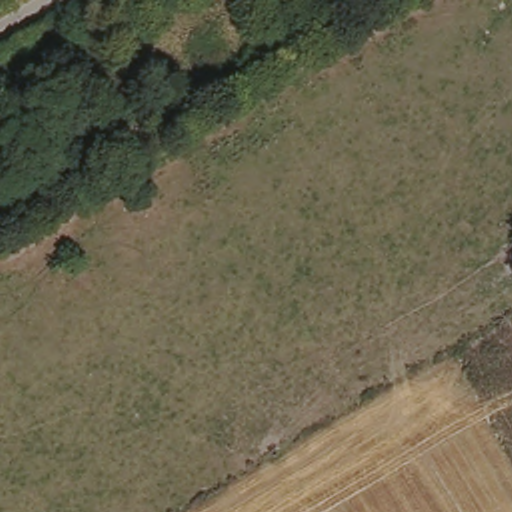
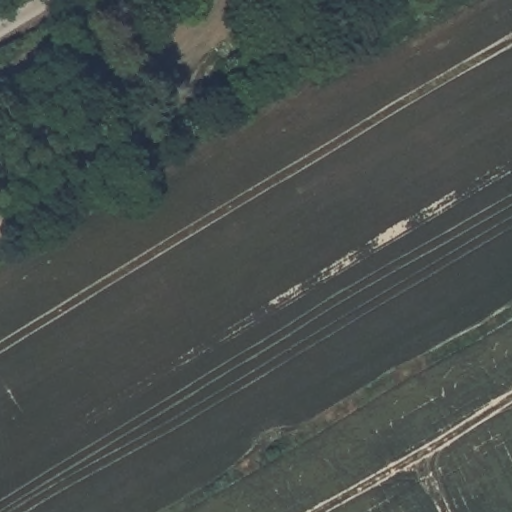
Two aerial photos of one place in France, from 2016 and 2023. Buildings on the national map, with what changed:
[]

